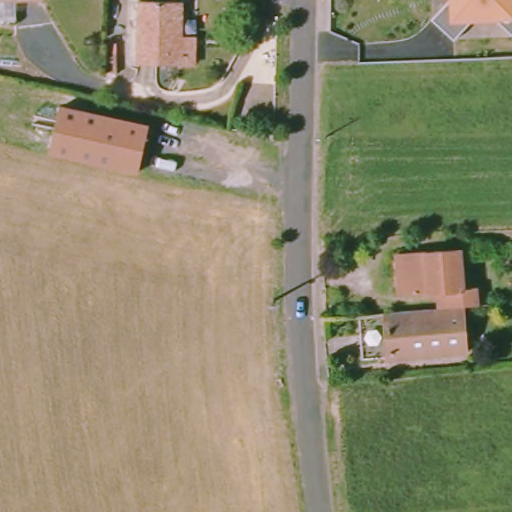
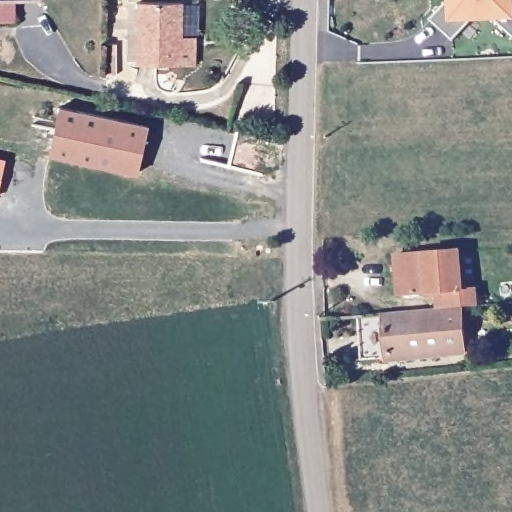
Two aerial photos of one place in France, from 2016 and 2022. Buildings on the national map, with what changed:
unchanged [(35,5),(0,5),(0,0),(35,0),(35,5)]
unchanged [(512,33),(496,19),(478,19),(458,41),(435,20),(455,0),(512,0),(512,33)]
unchanged [(192,62),(175,64),(133,64),(133,2),(175,1),(175,39),(191,39),(192,62)]
unchanged [(61,108),(151,129),(140,176),(50,156),(61,108)]
new [(5,162),(0,188),(0,161),(5,162)]
unchanged [(433,310),(432,292),(400,295),(398,252),(455,250),(457,290),(471,290),(472,306),(457,307),(433,310)]
unchanged [(380,313),(433,310),(457,307),(460,357),(384,365),(380,313)]
unchanged [(318,318),(332,317),(332,325),(318,326),(318,318)]

